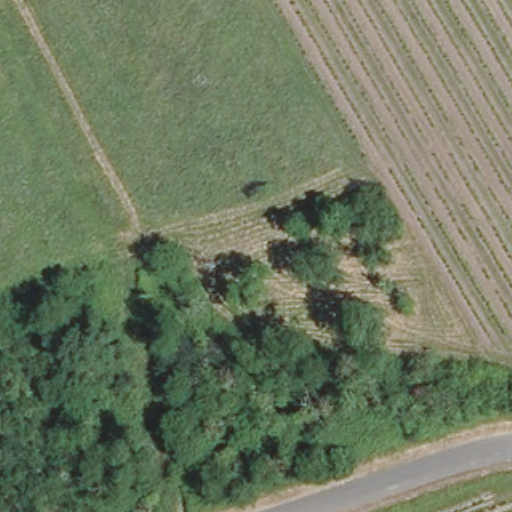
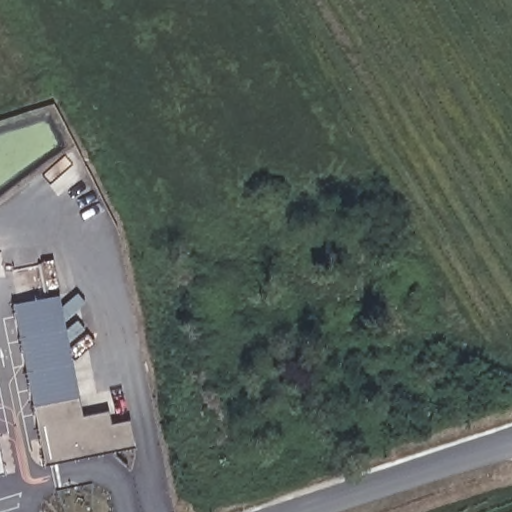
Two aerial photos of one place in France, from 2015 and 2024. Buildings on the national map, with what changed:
new [(135,447),(44,466),(11,304),(56,296),(80,416),(108,410),(111,424),(130,420),(135,447)]
new [(0,458),(3,472),(0,473),(0,458)]

